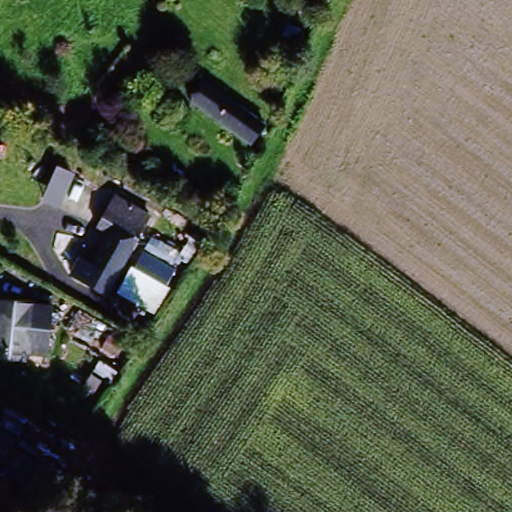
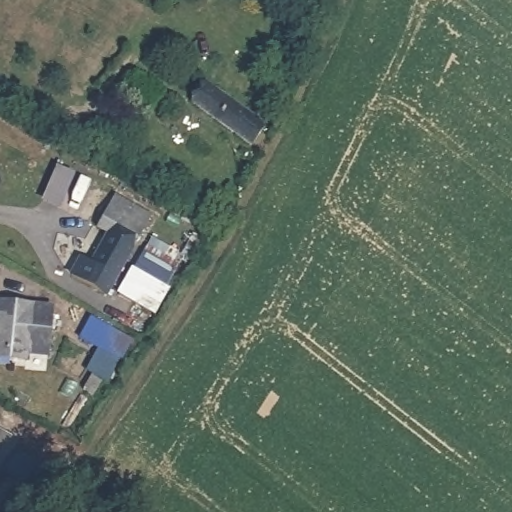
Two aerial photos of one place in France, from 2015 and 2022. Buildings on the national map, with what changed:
unchanged [(193,111),(207,91),(266,130),(251,151),(193,111)]
unchanged [(92,229),(110,194),(150,215),(132,250),(92,229)]
unchanged [(140,278),(149,262),(184,282),(176,297),(140,278)]
unchanged [(0,306),(6,289),(61,308),(42,364),(24,358),(20,370),(0,364),(0,306)]
unchanged [(95,386),(85,402),(72,396),(82,378),(95,386)]
unchanged [(0,431),(26,446),(0,492),(0,431)]
unchanged [(34,503),(29,512),(3,512),(14,492),(34,503)]

